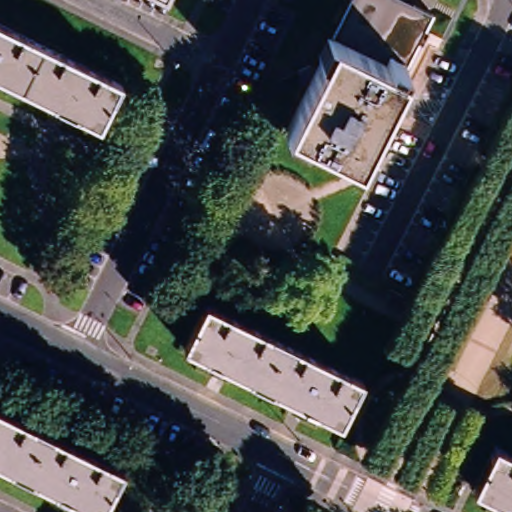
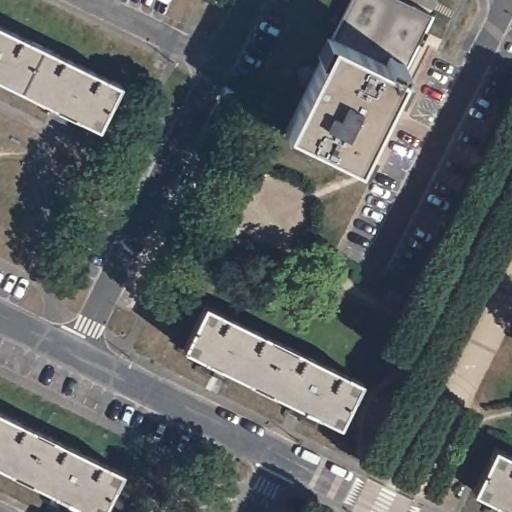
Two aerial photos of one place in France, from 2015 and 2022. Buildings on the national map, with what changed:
unchanged [(405,73),(333,40),(353,0),(392,0),(432,20),(405,73)]
unchanged [(120,88),(98,130),(0,82),(0,29),(120,88)]
unchanged [(405,73),(358,169),(287,134),(333,40),(405,73)]
unchanged [(360,381),(339,423),(185,346),(205,304),(360,381)]
unchanged [(48,500),(53,491),(0,464),(0,411),(120,471),(100,512),(96,512),(80,504),(76,512),(72,512),(48,500)]
unchanged [(494,500),(475,491),(495,448),(512,456),(512,512),(495,512),(489,509),(494,500)]

